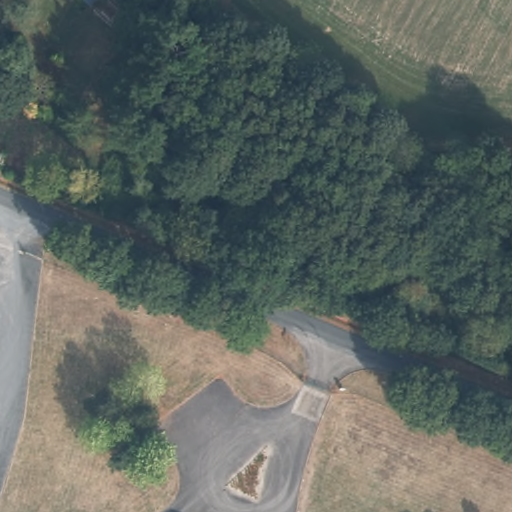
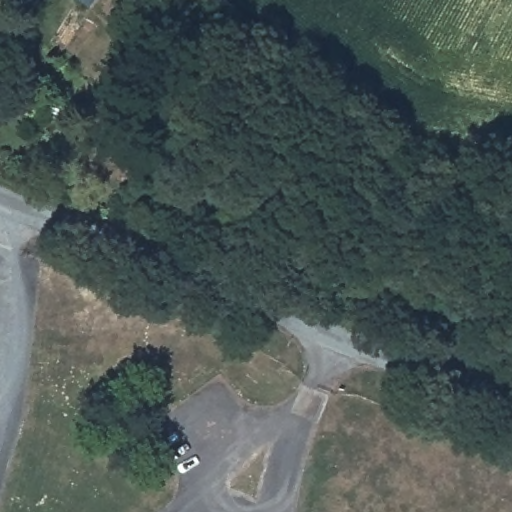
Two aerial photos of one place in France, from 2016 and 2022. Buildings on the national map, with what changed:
[]

